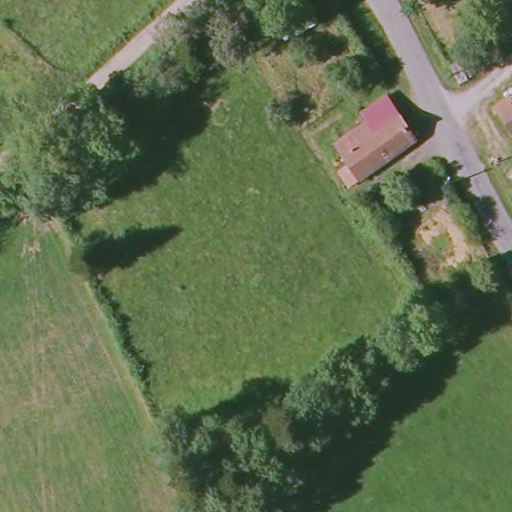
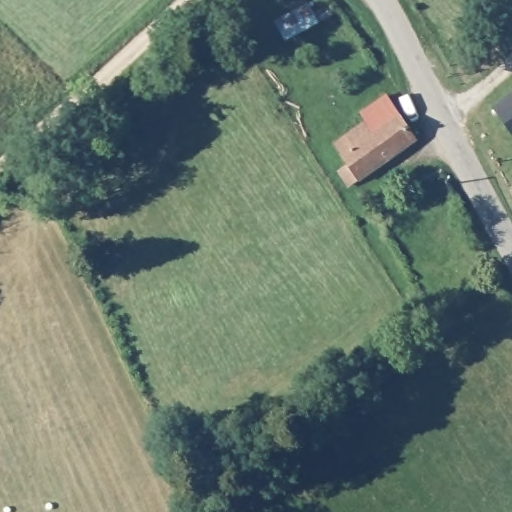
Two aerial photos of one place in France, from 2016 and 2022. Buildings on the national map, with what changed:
unchanged [(321,23),(289,41),(280,23),(311,6),(321,23)]
unchanged [(357,188),(348,173),(355,167),(341,145),(371,121),(366,113),(387,96),(420,136),(357,188)]
unchanged [(512,134),(493,108),(512,96),(512,134)]

